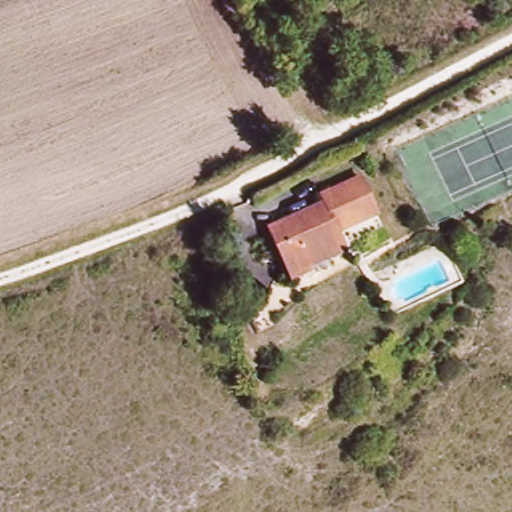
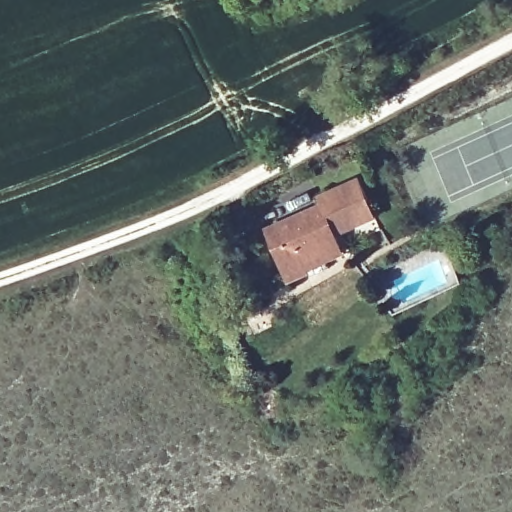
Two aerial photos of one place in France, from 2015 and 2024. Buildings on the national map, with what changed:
unchanged [(321,204),(362,180),(377,221),(342,235),(352,255),(297,283),(274,236),(324,210),(321,204)]

